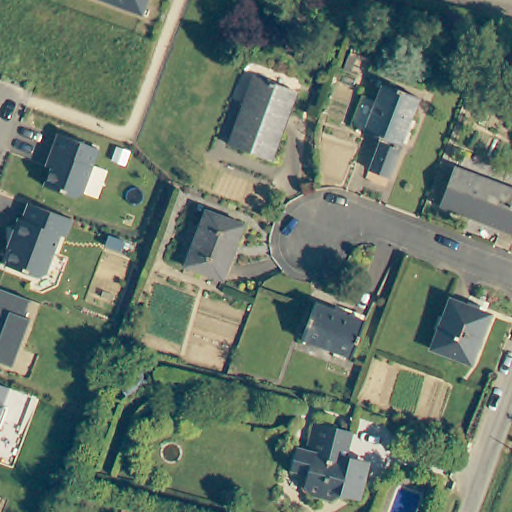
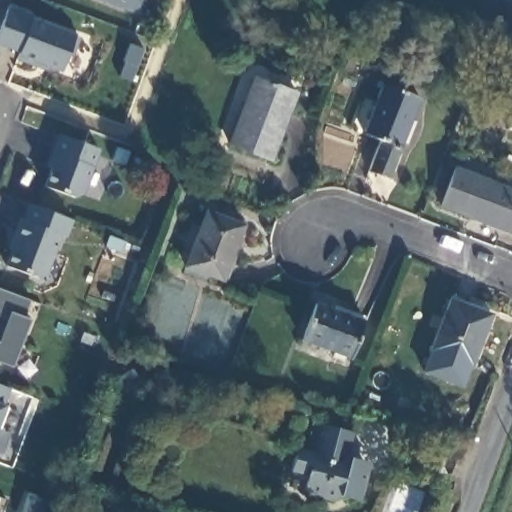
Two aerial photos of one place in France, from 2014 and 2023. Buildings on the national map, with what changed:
unchanged [(151,26),(83,0),(161,0),(151,26)]
new [(9,7),(32,15),(31,19),(74,35),(81,37),(73,56),(67,55),(61,71),(44,65),(43,70),(16,58),(19,51),(0,45),(0,29),(9,7)]
unchanged [(227,147),(251,78),(292,91),(268,161),(227,147)]
unchanged [(372,168),(383,138),(363,130),(381,80),(420,94),(391,175),(372,168)]
unchanged [(103,158),(86,204),(80,206),(49,195),(61,163),(56,161),(63,143),(103,158)]
unchanged [(457,167),(512,187),(512,230),(443,205),(457,167)]
unchanged [(186,264),(205,209),(243,222),(223,277),(186,264)]
unchanged [(77,229),(69,246),(64,244),(48,284),(41,286),(9,274),(20,246),(16,245),(23,227),(27,229),(33,212),(77,229)]
unchanged [(27,325),(34,327),(15,376),(0,370),(0,296),(20,303),(34,308),(27,325)]
unchanged [(353,356),(305,338),(316,302),(367,318),(353,356)]
unchanged [(484,317),(466,363),(430,350),(448,303),(484,317)]
unchanged [(10,388),(5,405),(4,407),(8,408),(0,428),(0,384),(10,388)]
unchanged [(354,430),(350,455),(359,457),(358,464),(368,466),(361,495),(339,492),(337,497),(306,491),(310,471),(293,465),(298,443),(309,446),(313,433),(317,420),(354,430)]
unchanged [(0,503),(0,501),(1,501),(0,503)]

